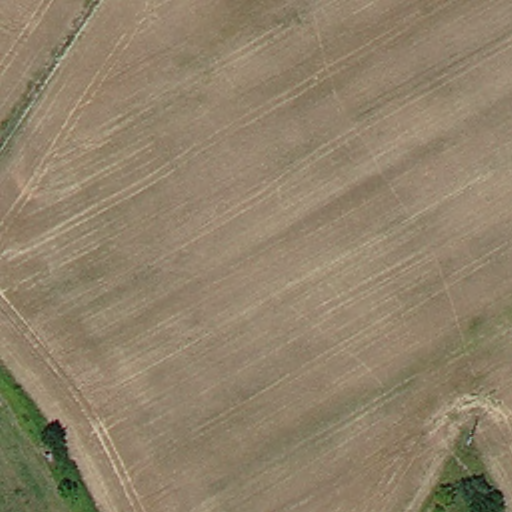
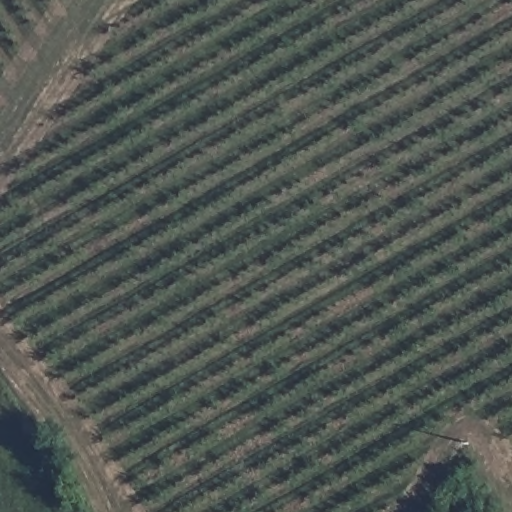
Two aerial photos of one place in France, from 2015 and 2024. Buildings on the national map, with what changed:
[]

